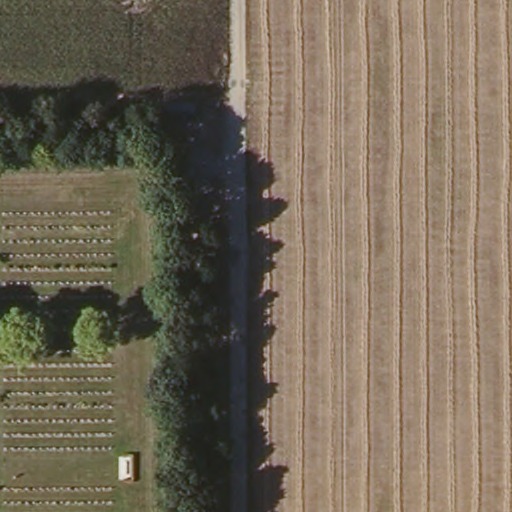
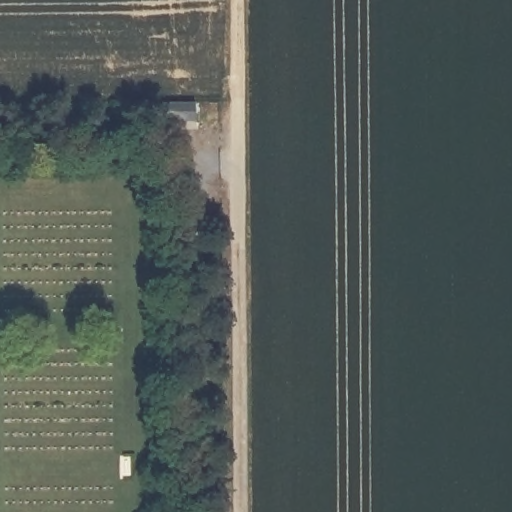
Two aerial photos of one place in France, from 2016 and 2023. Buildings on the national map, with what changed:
unchanged [(204,96),(204,112),(169,113),(167,96),(204,96)]

